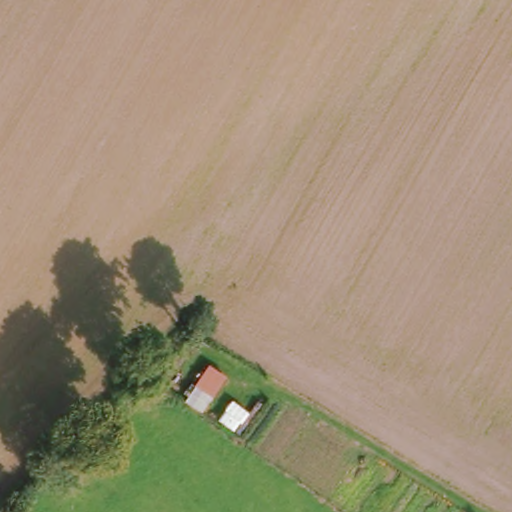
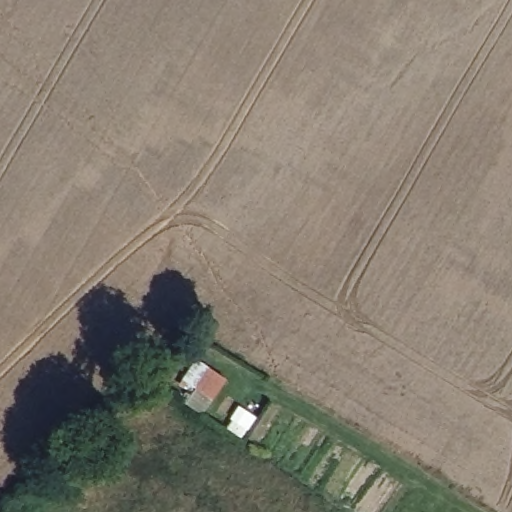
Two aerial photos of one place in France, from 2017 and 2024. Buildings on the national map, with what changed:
unchanged [(208,368),(224,378),(213,400),(196,389),(208,368)]

